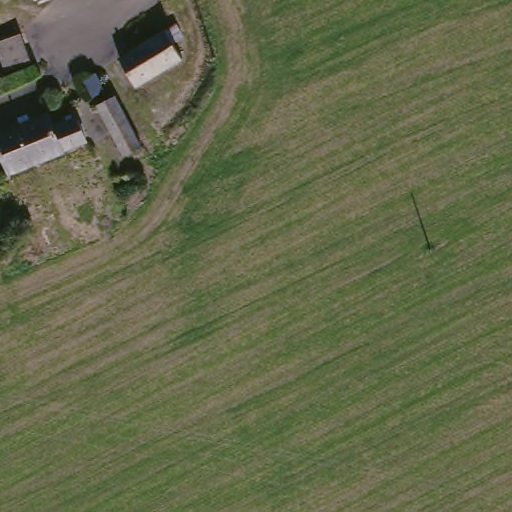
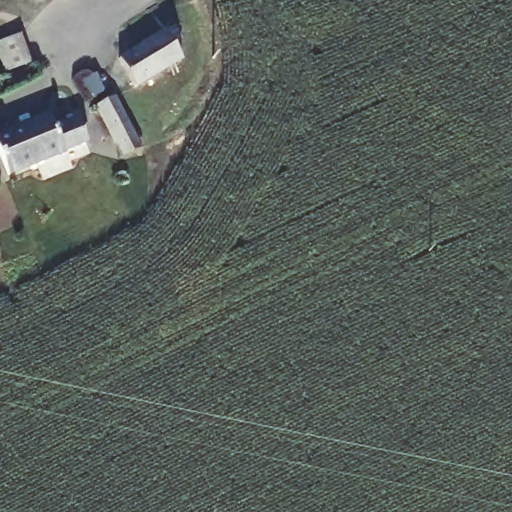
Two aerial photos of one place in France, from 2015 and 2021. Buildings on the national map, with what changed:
unchanged [(180,36),(169,45),(178,61),(146,80),(128,46),(169,21),(180,36)]
unchanged [(38,58),(11,69),(4,50),(1,44),(28,34),(31,41),(38,58)]
unchanged [(112,101),(138,146),(114,161),(106,147),(99,131),(92,118),(90,114),(112,101)]
unchanged [(51,136),(76,128),(83,149),(7,179),(0,162),(0,143),(46,125),(51,136)]

